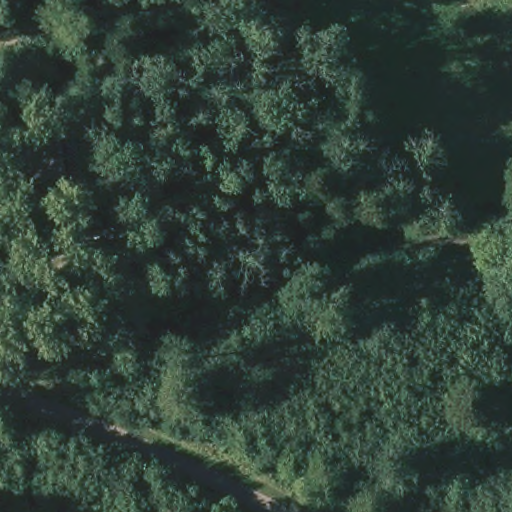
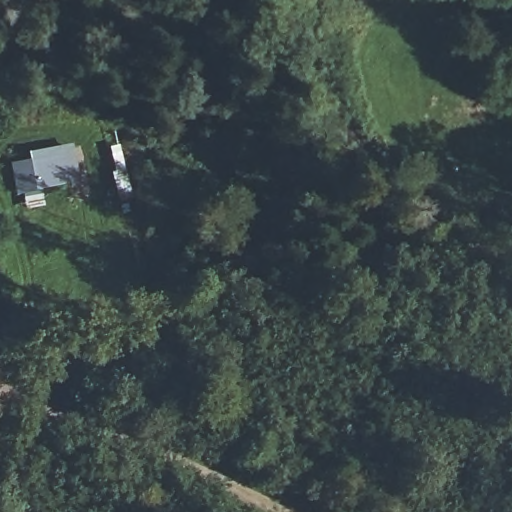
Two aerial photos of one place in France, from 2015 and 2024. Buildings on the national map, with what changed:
new [(38,189),(41,206),(24,209),(21,192),(15,194),(10,162),(28,159),(27,152),(69,144),(78,180),(38,189)]

